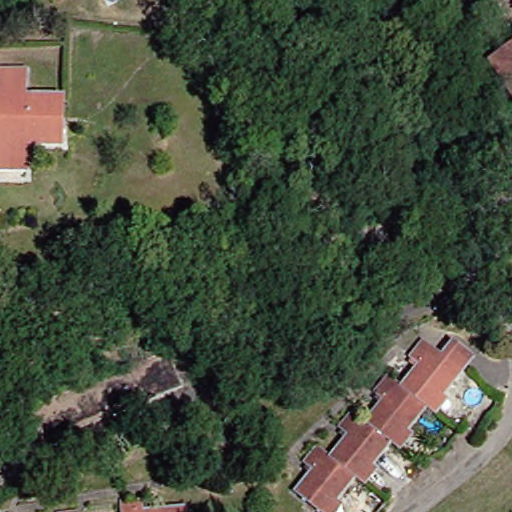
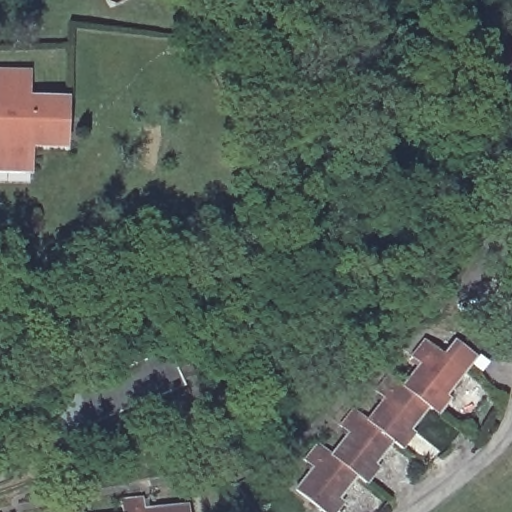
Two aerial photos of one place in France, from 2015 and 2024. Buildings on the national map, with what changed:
unchanged [(484,66),(512,48),(512,109),(484,66)]
unchanged [(0,73),(24,74),(22,99),(62,100),(60,145),(25,145),(25,162),(25,170),(0,170),(0,73)]
unchanged [(415,366),(405,358),(419,342),(438,357),(450,342),(470,358),(440,396),(445,400),(432,415),(422,408),(397,388),(410,372),(415,366)]
unchanged [(171,365),(184,360),(193,380),(180,385),(41,442),(28,412),(167,356),(171,365)]
unchanged [(422,408),(405,430),(408,434),(396,450),(386,442),(360,421),(378,398),(370,392),(382,376),(397,388),(422,408)]
unchanged [(386,442),(368,465),(373,468),(360,484),(351,476),(325,455),(342,433),(335,426),(346,411),(360,421),(386,442)]
unchanged [(351,476),(332,499),(337,502),(329,512),(317,512),(288,490),(307,467),(298,460),(311,445),(325,455),(351,476)]
unchanged [(120,500),(136,498),(137,512),(121,512),(120,500)]
unchanged [(147,507),(182,504),(183,512),(148,512),(147,507)]
unchanged [(76,510),(77,512),(55,512),(76,510)]

